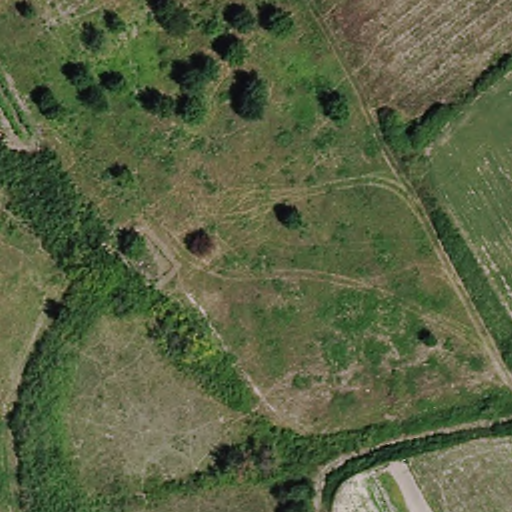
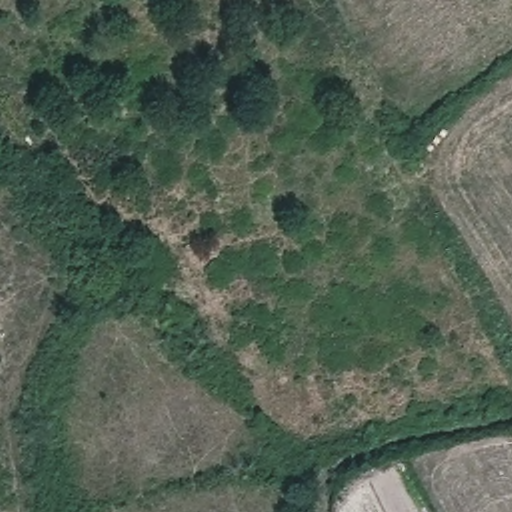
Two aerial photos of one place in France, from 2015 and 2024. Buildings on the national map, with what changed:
[]

